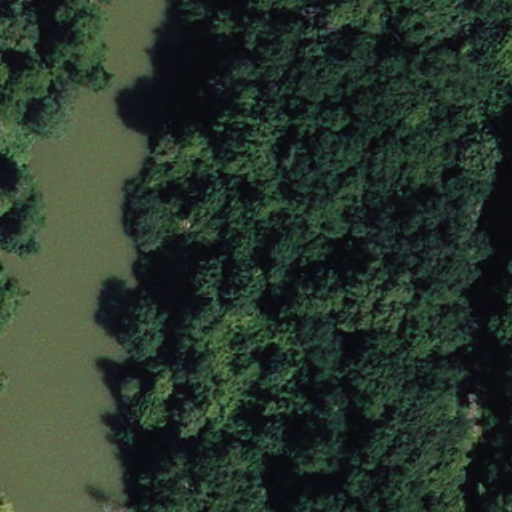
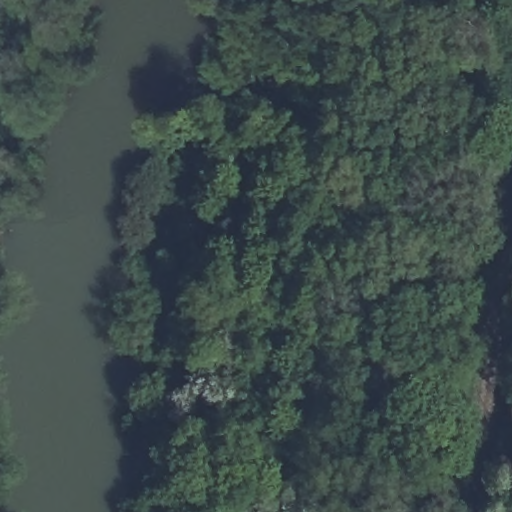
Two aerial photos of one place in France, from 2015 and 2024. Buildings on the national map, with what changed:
[]

